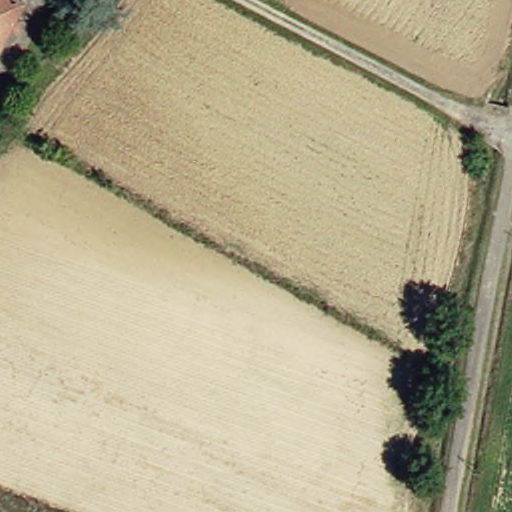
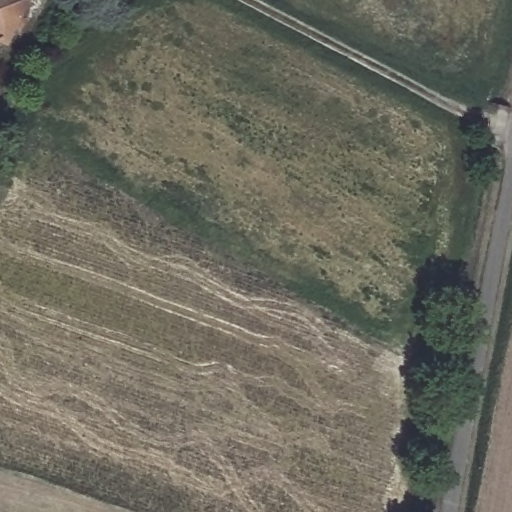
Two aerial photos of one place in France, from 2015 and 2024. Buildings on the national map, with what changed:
unchanged [(0,40),(0,0),(25,0),(0,40)]

